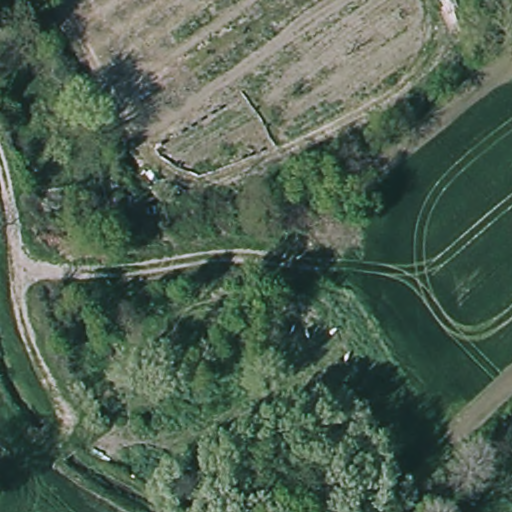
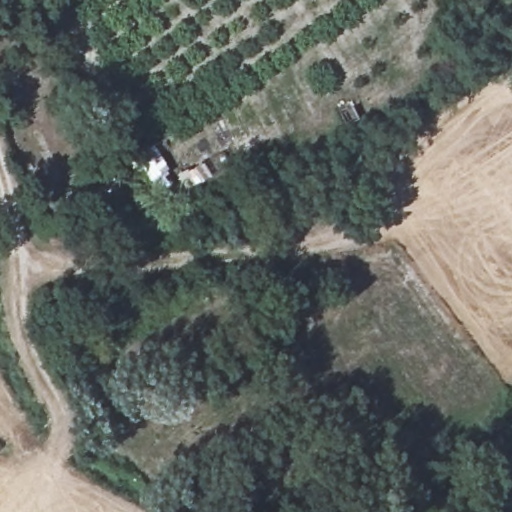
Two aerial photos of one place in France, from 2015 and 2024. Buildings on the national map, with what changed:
unchanged [(142,212),(95,215),(95,196),(142,198),(142,212)]

